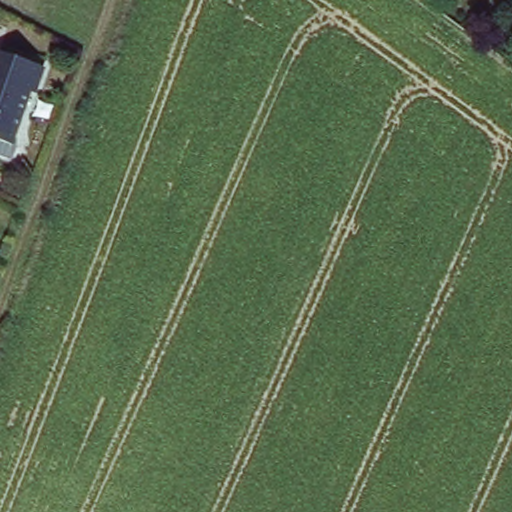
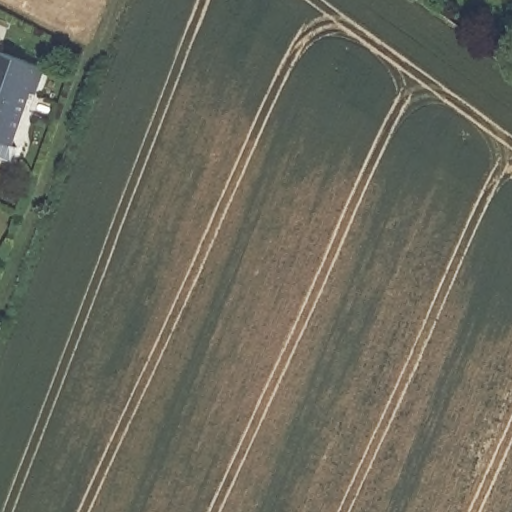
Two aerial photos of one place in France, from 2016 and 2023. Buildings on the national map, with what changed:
unchanged [(11,144),(0,141),(0,53),(38,66),(11,144)]

